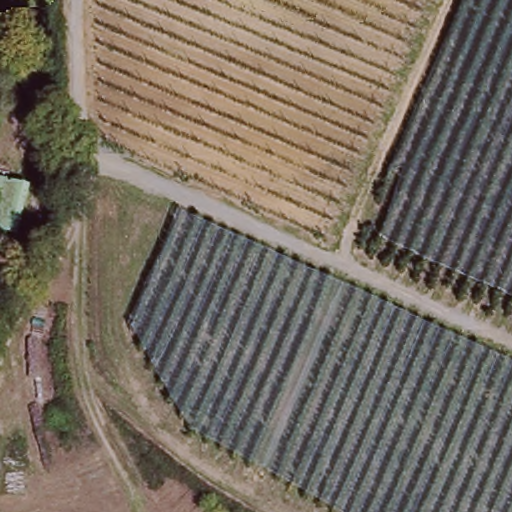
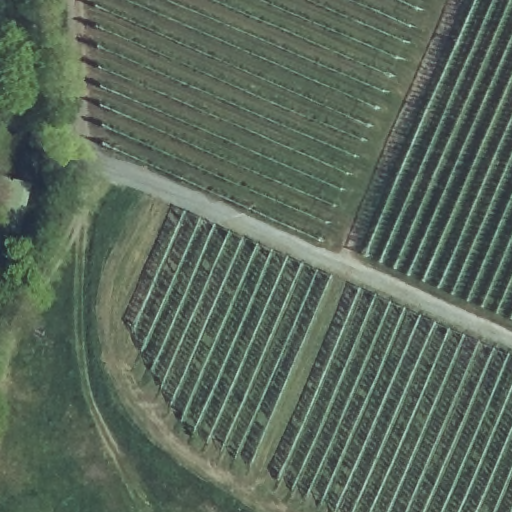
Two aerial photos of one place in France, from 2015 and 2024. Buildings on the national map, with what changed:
unchanged [(18,242),(0,238),(0,183),(30,191),(18,242)]

